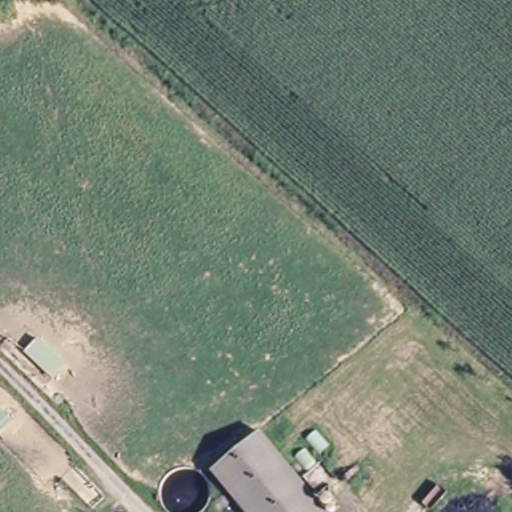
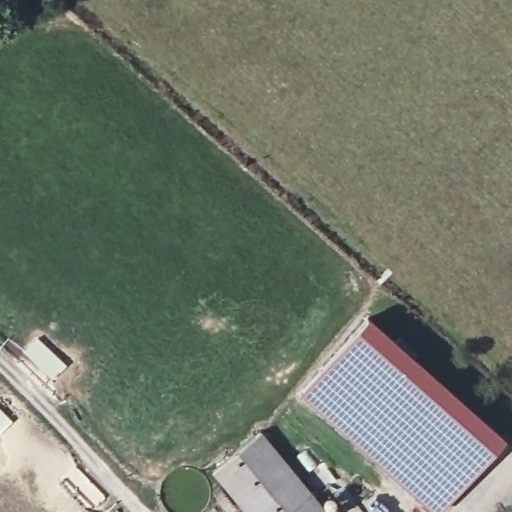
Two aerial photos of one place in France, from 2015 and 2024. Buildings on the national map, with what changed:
new [(506,438),(439,512),(433,512),(301,395),(368,316),(506,438)]
demolished [(207,472),(262,421),(334,512),(240,512),(207,472)]
new [(212,470),(258,430),(327,512),(247,512),(212,470)]

